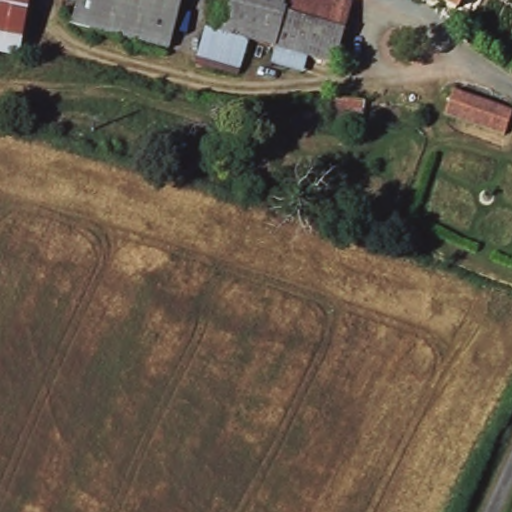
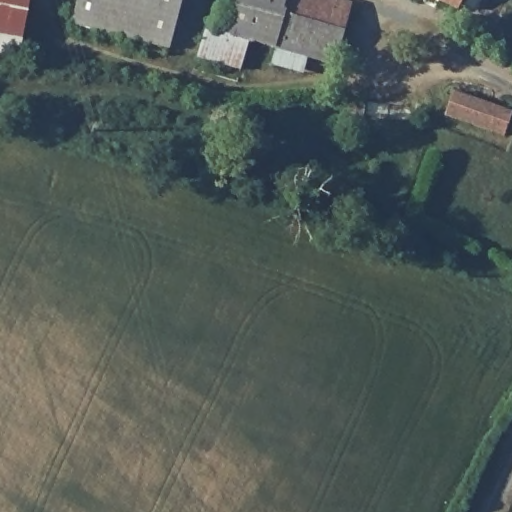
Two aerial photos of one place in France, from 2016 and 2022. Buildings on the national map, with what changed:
unchanged [(0,58),(0,0),(28,0),(14,61),(0,58)]
unchanged [(68,21),(74,0),(179,0),(165,49),(68,21)]
unchanged [(330,68),(251,45),(245,44),(209,33),(212,21),(219,0),(322,0),(349,9),(330,68)]
unchanged [(427,0),(462,0),(456,13),(427,0)]
unchanged [(245,44),(236,72),(193,58),(206,19),(212,21),(209,33),(245,44)]
unchanged [(446,124),(456,93),(512,113),(512,116),(503,142),(489,138),(446,124)]
unchanged [(407,124),(362,124),(361,135),(329,134),(329,101),(412,105),(407,124)]

